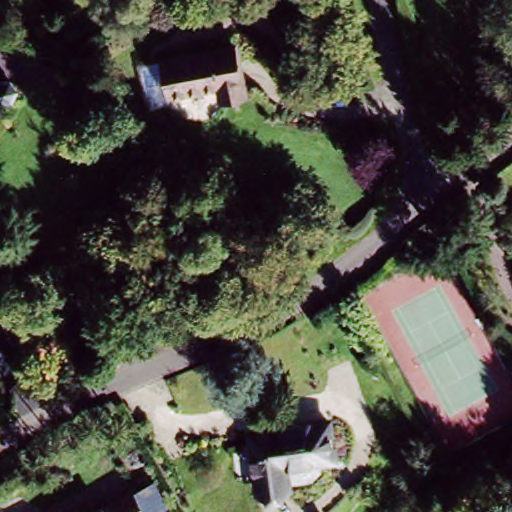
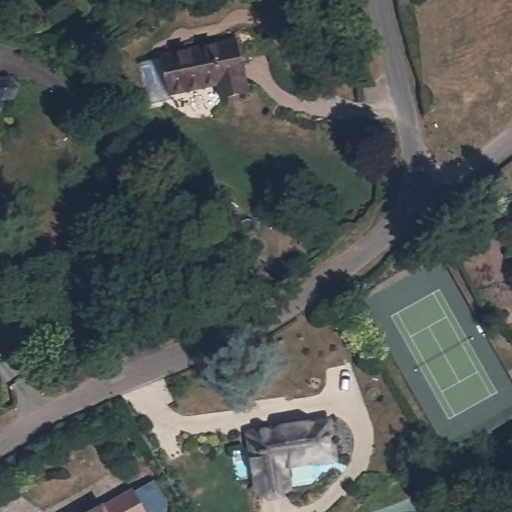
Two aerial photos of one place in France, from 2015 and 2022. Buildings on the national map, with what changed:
unchanged [(233,42),(245,96),(224,101),(219,86),(167,96),(159,58),(233,42)]
unchanged [(12,99),(6,109),(0,109),(0,88),(6,88),(12,99)]
unchanged [(322,427),(326,465),(279,471),(281,492),(255,495),(248,437),(322,427)]
unchanged [(134,512),(91,512),(123,494),(134,512)]

